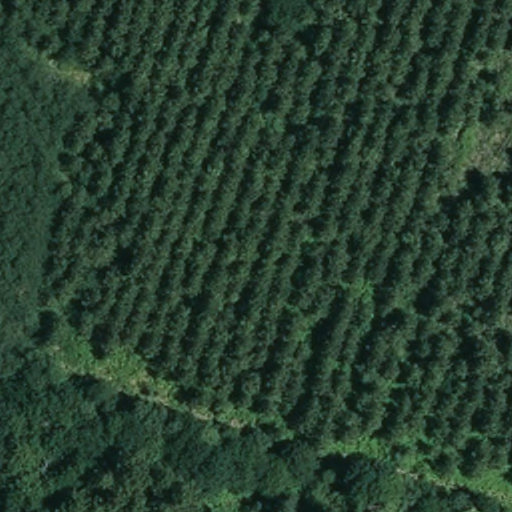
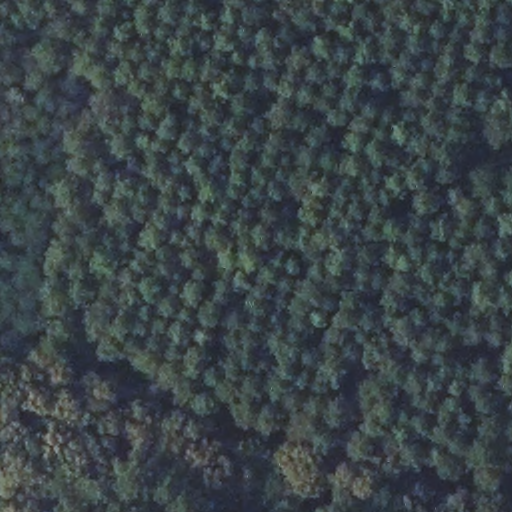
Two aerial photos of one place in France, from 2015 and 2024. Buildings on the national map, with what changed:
[]

